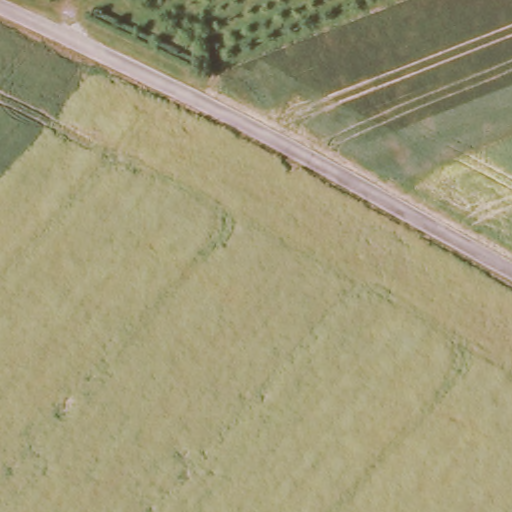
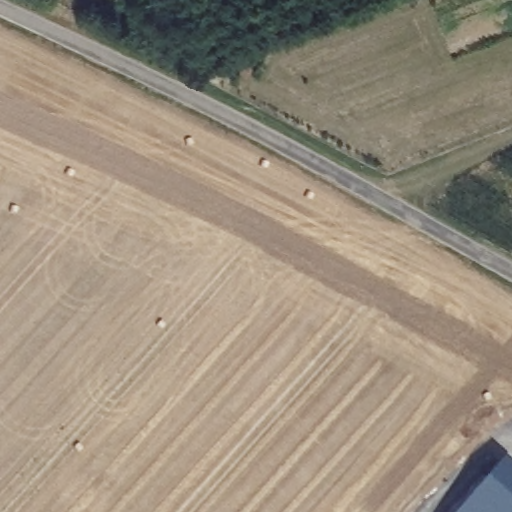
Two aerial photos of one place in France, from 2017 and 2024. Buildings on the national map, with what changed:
new [(512,469),(512,512),(455,512),(501,459),(512,469)]

